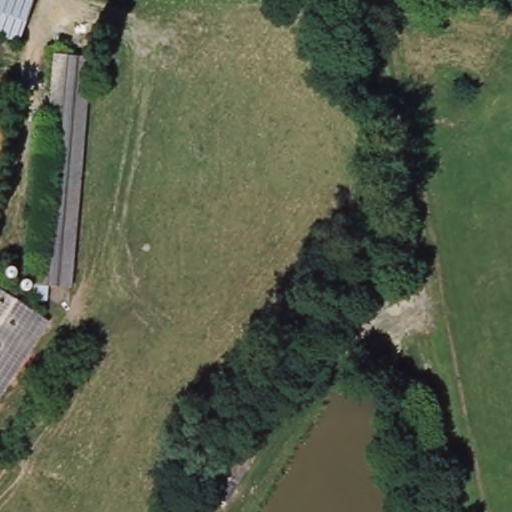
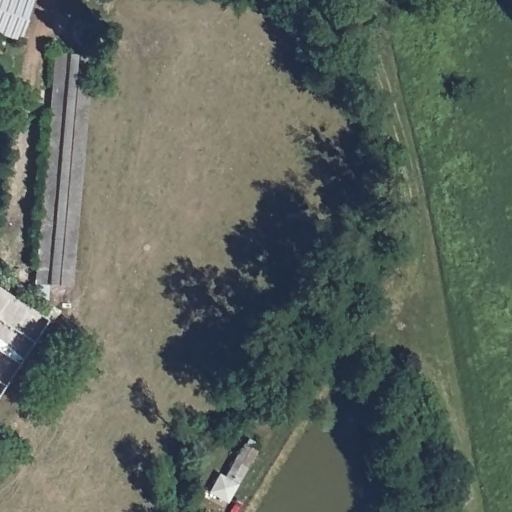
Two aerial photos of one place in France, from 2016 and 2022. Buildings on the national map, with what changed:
unchanged [(19,41),(0,34),(0,0),(27,0),(32,2),(19,41)]
unchanged [(95,56),(72,285),(50,283),(48,296),(36,294),(60,52),(95,56)]
unchanged [(0,400),(0,287),(50,322),(0,400)]

